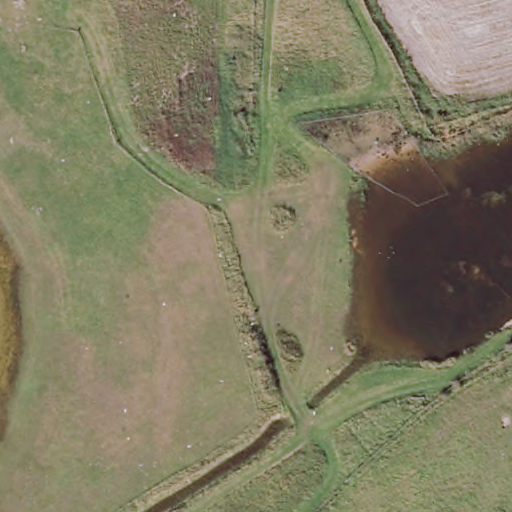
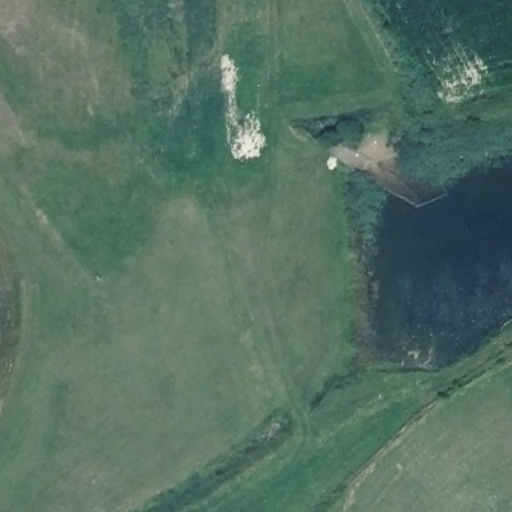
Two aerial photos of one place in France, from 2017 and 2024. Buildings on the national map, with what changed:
[]

